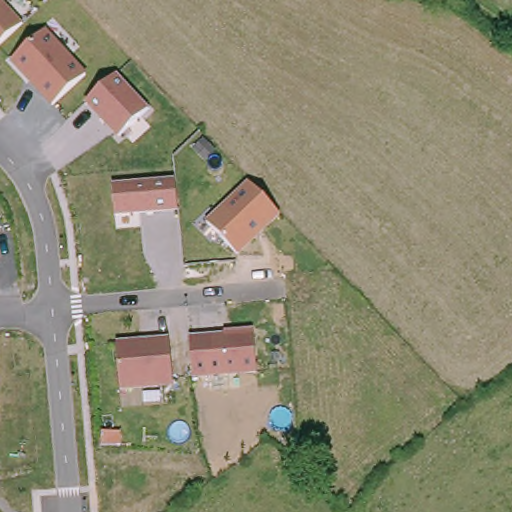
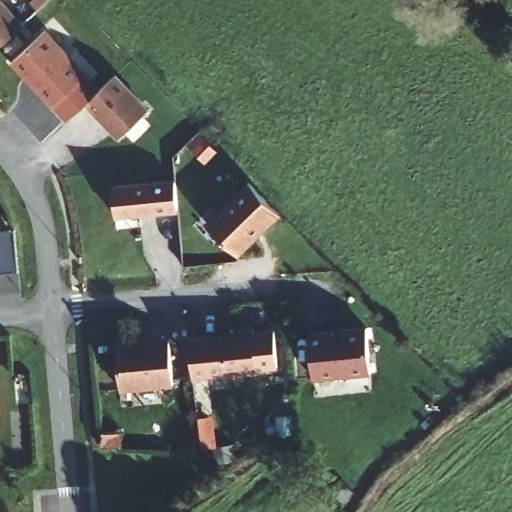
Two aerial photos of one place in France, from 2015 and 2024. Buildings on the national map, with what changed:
unchanged [(0,45),(0,0),(1,0),(23,24),(0,45)]
unchanged [(86,75),(51,108),(10,64),(47,31),(86,75)]
unchanged [(150,110),(117,139),(85,105),(117,75),(150,110)]
unchanged [(115,219),(112,187),(175,181),(178,213),(115,219)]
unchanged [(282,216),(239,257),(205,223),(247,182),(282,216)]
unchanged [(224,331),(252,329),(257,375),(194,381),(190,338),(224,334),(224,331)]
new [(328,334),(329,335),(339,334),(339,333),(366,330),(370,375),(313,380),(309,335),(328,334)]
unchanged [(173,388),(122,392),(117,343),(169,338),(173,388)]

